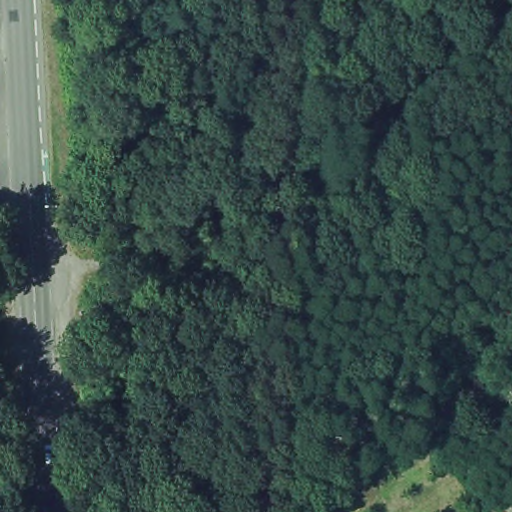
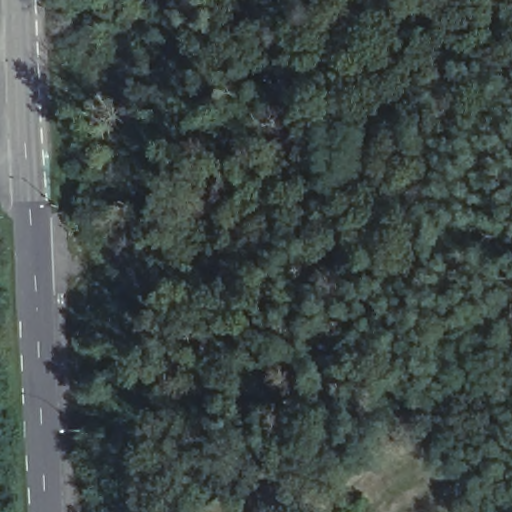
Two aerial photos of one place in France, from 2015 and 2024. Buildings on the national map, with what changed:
unchanged [(83,255),(83,261),(78,261),(78,256),(83,255)]
unchanged [(125,370),(124,372),(123,374),(121,375),(120,376),(118,377),(116,377),(115,377),(113,376),(111,375),(110,373),(109,372),(108,370),(108,368),(108,366),(109,365),(110,363),(111,362),(113,361),(115,360),(116,360),(118,360),(120,361),(122,362),(123,363),(124,365),(125,366),(125,368),(125,370)]

